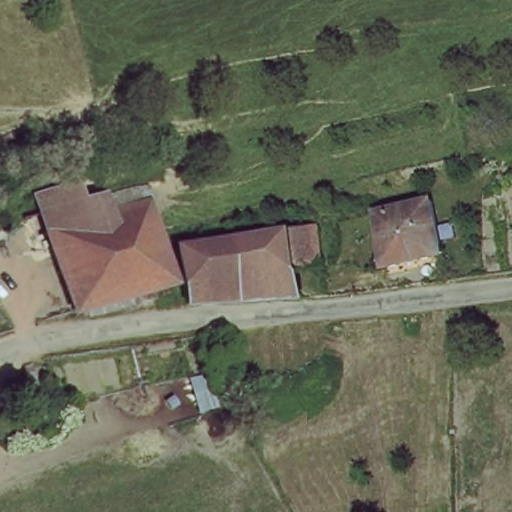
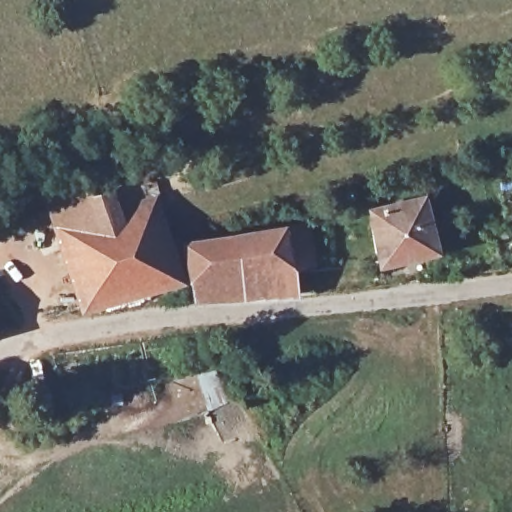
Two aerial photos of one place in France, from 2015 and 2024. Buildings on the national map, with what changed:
unchanged [(51,192),(104,176),(114,210),(155,199),(181,279),(87,305),(78,278),(62,229),(51,192)]
unchanged [(382,258),(369,210),(421,197),(432,247),(382,258)]
unchanged [(191,272),(187,237),(266,227),(265,219),(278,217),(278,222),(283,260),(191,272)]
unchanged [(309,218),(314,256),(290,258),(283,260),(278,222),(309,218)]
unchanged [(193,293),(191,272),(283,260),(290,258),(292,289),(193,293)]

